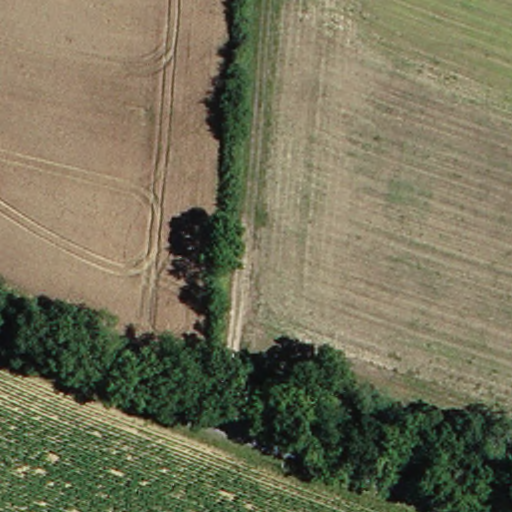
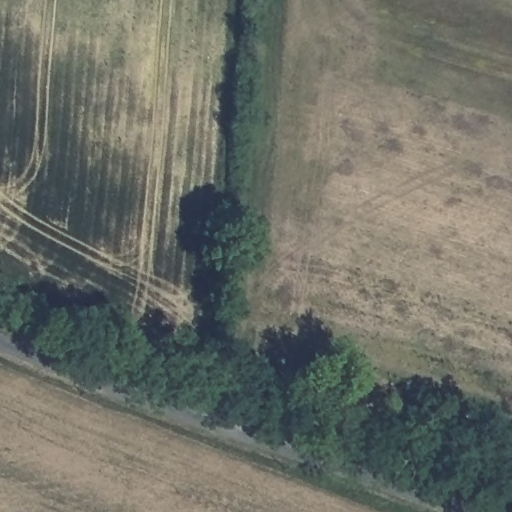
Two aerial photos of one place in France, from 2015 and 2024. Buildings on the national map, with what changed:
[]

